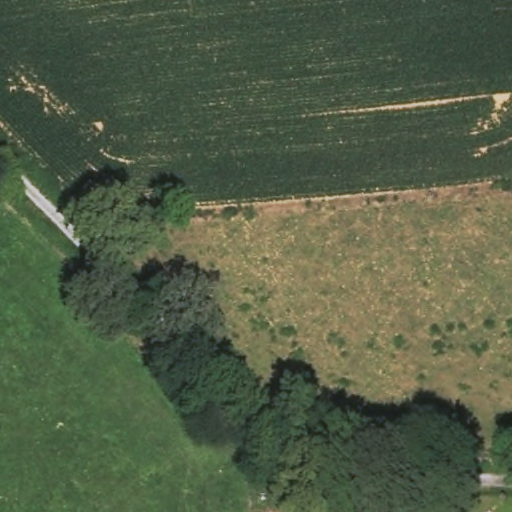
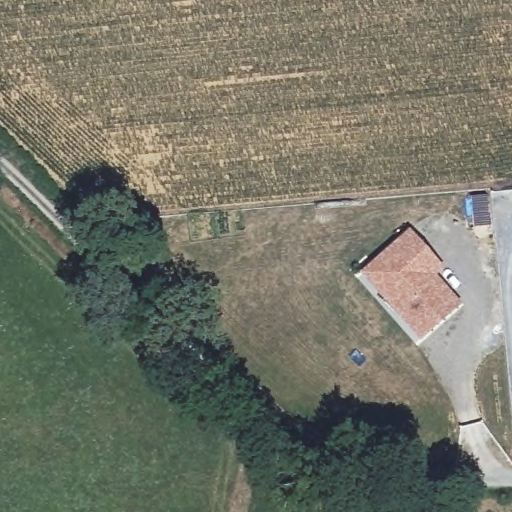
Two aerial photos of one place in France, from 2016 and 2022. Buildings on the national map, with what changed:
new [(431,256),(441,267),(430,276),(456,305),(419,340),(382,299),(361,276),(372,266),(408,232),(431,256)]

